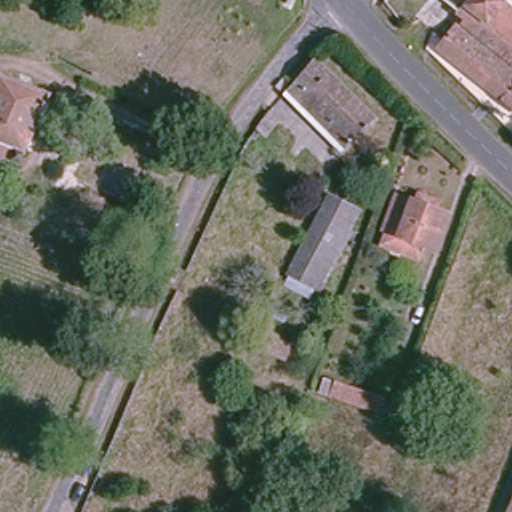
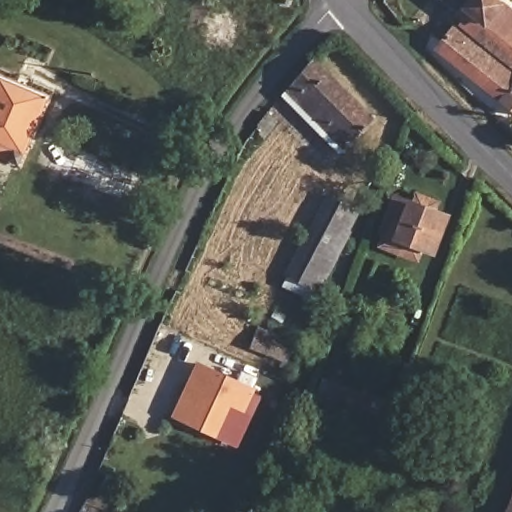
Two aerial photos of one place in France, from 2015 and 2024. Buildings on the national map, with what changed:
unchanged [(462,24),(465,26),(469,21),(440,0),(501,0),(512,8),(512,101),(443,51),(462,24)]
unchanged [(312,61),(372,122),(342,152),(282,95),(312,61)]
unchanged [(48,101),(19,172),(5,166),(0,164),(0,82),(48,101)]
unchanged [(256,129),(270,111),(279,120),(266,139),(256,129)]
unchanged [(435,254),(426,252),(421,250),(418,258),(381,245),(384,237),(381,235),(392,201),(395,192),(412,198),(415,199),(418,190),(437,197),(434,207),(439,209),(450,212),(435,254)]
unchanged [(287,284),(300,258),(332,196),(358,209),(325,272),(312,297),(287,284)]
demolished [(431,304),(421,331),(405,326),(416,298),(431,304)]
demolished [(456,302),(478,310),(464,347),(440,340),(456,302)]
unchanged [(259,327),(293,339),(286,362),(251,348),(259,327)]
new [(198,360),(264,392),(238,447),(172,416),(198,360)]
unchanged [(333,386),(386,403),(383,413),(330,396),(333,386)]

